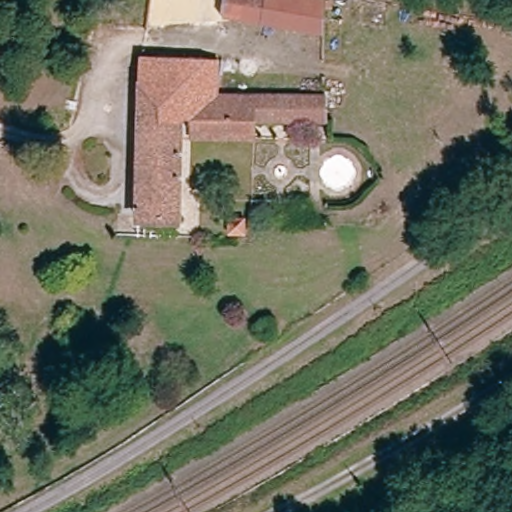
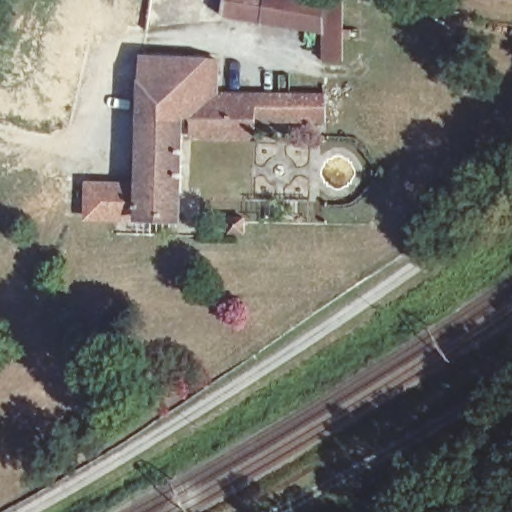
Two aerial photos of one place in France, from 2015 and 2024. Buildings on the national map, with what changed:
unchanged [(224,0),(325,0),(324,36),(220,18),(224,0)]
demolished [(332,6),(325,6),(325,0),(332,0),(332,6)]
unchanged [(130,219),(136,57),(212,60),(211,95),(320,99),(319,124),(247,121),(245,121),(186,119),(175,119),(172,221),(130,219)]
unchanged [(245,121),(247,121),(247,139),(185,137),(186,119),(245,121)]
new [(132,183),(130,219),(84,222),(85,181),(132,183)]

